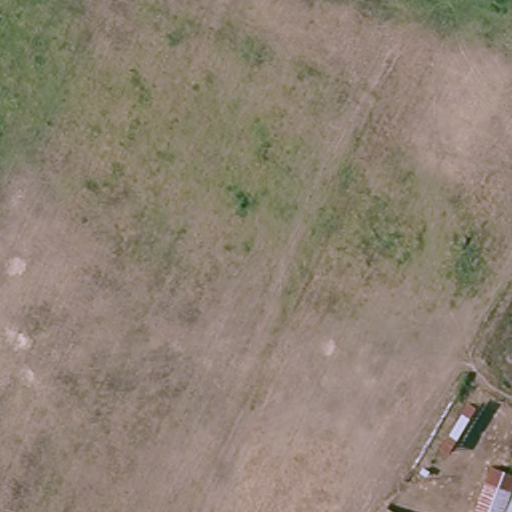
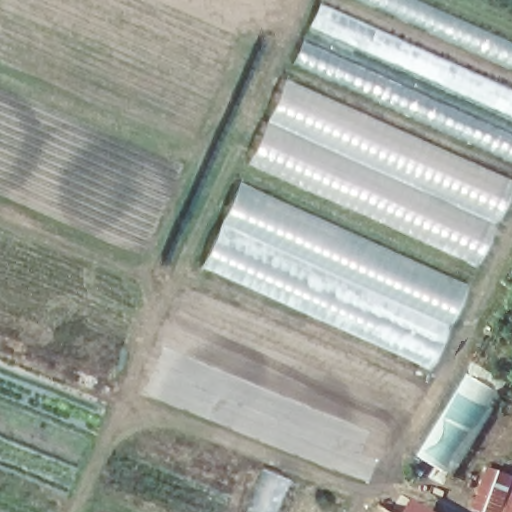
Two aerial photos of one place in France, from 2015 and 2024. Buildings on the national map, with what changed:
new [(512,72),(352,0),(416,0),(512,44),(512,72)]
new [(317,1),(512,88),(512,119),(305,25),(317,1)]
new [(512,163),(288,62),(299,39),(512,134),(512,163)]
new [(285,75),(512,176),(512,186),(477,263),(247,161),(285,75)]
new [(430,368),(201,267),(239,182),(467,283),(430,368)]
new [(451,456),(441,460),(435,456),(440,448),(433,444),(458,412),(483,369),(504,381),(458,460),(451,456)]
unchanged [(512,475),(512,512),(481,512),(473,509),(491,467),(512,475)]
unchanged [(390,511),(392,512),(389,512),(390,511)]

